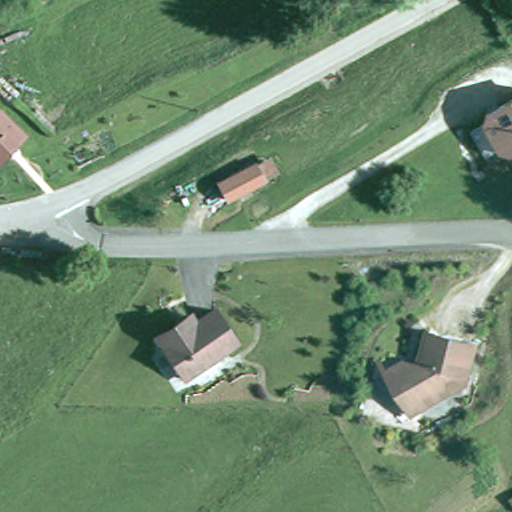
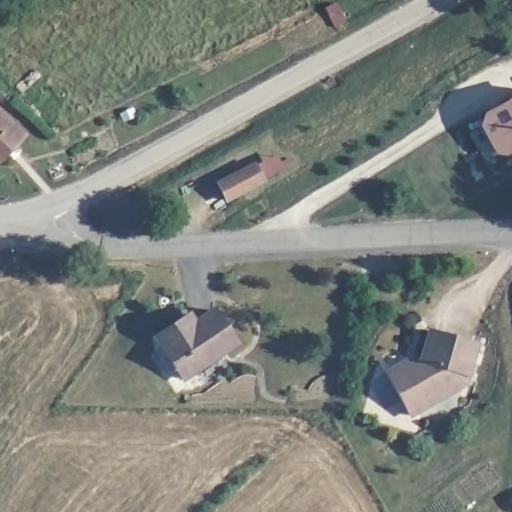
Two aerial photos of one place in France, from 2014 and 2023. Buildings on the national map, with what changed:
unchanged [(492,152),(479,127),(482,119),(482,117),(512,101),(512,149),(511,150),(503,155),(492,152)]
unchanged [(22,133),(0,161),(0,116),(22,133)]
unchanged [(245,171),(259,164),(267,179),(255,186),(217,205),(209,190),(245,171)]
unchanged [(152,339),(149,334),(183,312),(189,320),(209,307),(230,340),(176,375),(152,339)]
unchanged [(444,324),(492,337),(480,377),(422,408),(402,370),(422,359),(427,360),(436,356),(444,324)]

